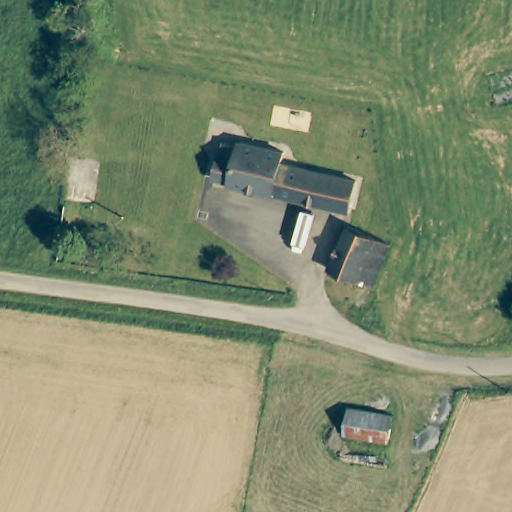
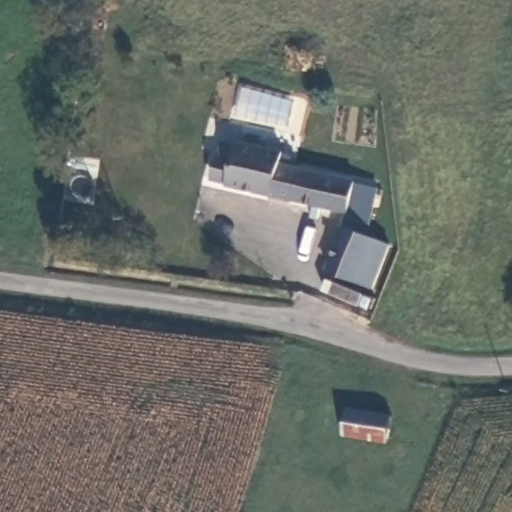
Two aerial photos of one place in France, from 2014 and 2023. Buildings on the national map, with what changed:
unchanged [(232,184),(233,181),(217,178),(222,155),(224,155),(227,140),(242,144),(243,140),(287,151),(285,162),(360,180),(353,211),(232,184)]
unchanged [(96,165),(87,222),(66,218),(74,160),(96,165)]
unchanged [(387,239),(370,282),(325,265),(342,220),(387,239)]
unchanged [(392,413),(387,438),(372,437),(343,431),(347,406),(392,413)]

